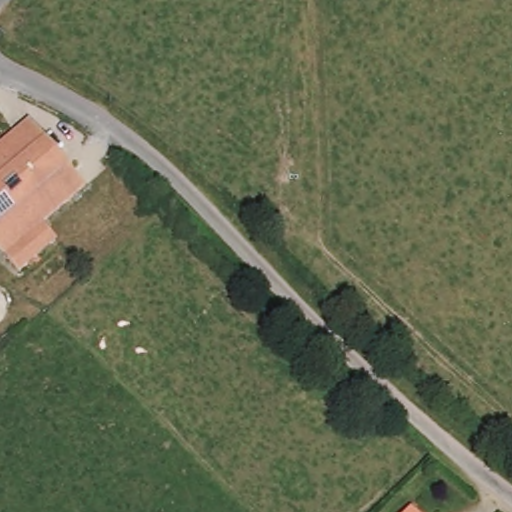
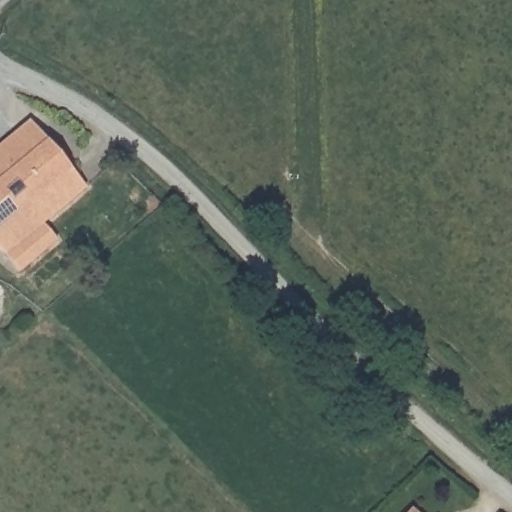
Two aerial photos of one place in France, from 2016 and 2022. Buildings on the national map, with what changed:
unchanged [(29,125),(85,191),(22,244),(4,259),(0,253),(0,149),(29,125)]
unchanged [(416,512),(407,512),(411,508),(416,512)]

